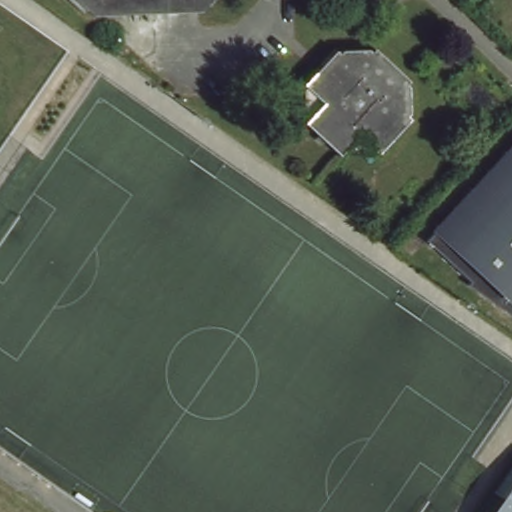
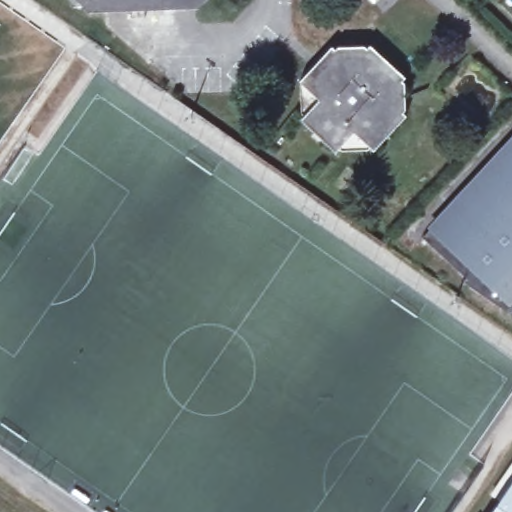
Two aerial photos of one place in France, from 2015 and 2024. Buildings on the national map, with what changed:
unchanged [(86,11),(73,0),(202,0),(193,11),(86,11)]
unchanged [(408,95),(397,106),(403,110),(372,152),(352,135),(334,156),(297,122),(316,100),(297,82),(330,43),(337,49),(342,41),(347,46),(350,42),(351,44),(356,40),(362,45),(366,41),(372,46),(377,41),(410,70),(405,75),(410,80),(405,87),(409,89),(406,92),(408,95)]
unchanged [(421,227),(512,130),(512,306),(462,270),(465,267),(421,227)]
unchanged [(512,483),(512,512),(492,512),(512,483)]

